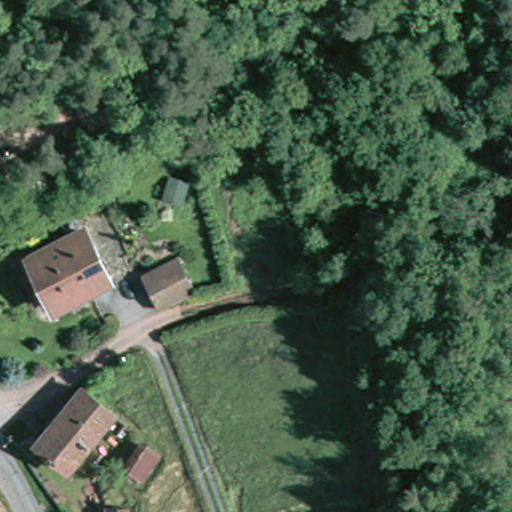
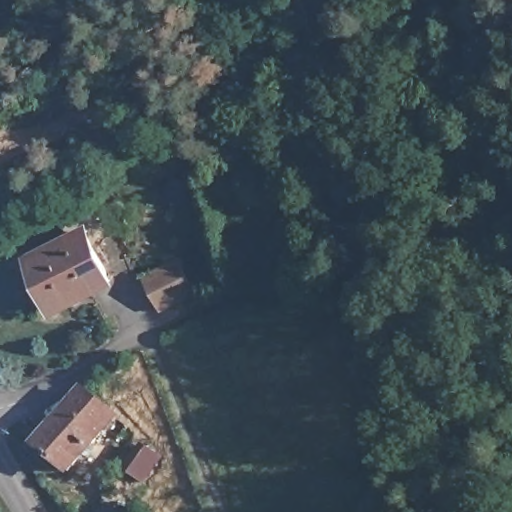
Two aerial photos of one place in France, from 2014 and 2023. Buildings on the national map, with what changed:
unchanged [(118,286),(59,314),(35,264),(32,258),(41,253),(45,260),(95,237),(118,286)]
unchanged [(198,294),(164,309),(148,275),(181,258),(198,294)]
unchanged [(63,475),(30,449),(34,445),(81,392),(111,417),(99,430),(63,475)]
unchanged [(158,459),(139,485),(118,471),(136,444),(158,459)]
unchanged [(134,511),(134,512),(107,512),(108,510),(134,511)]

